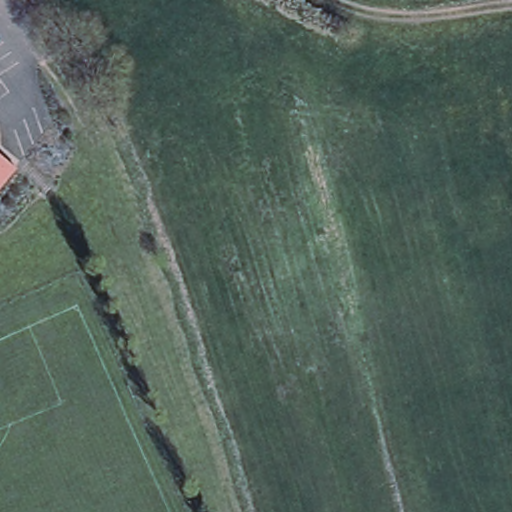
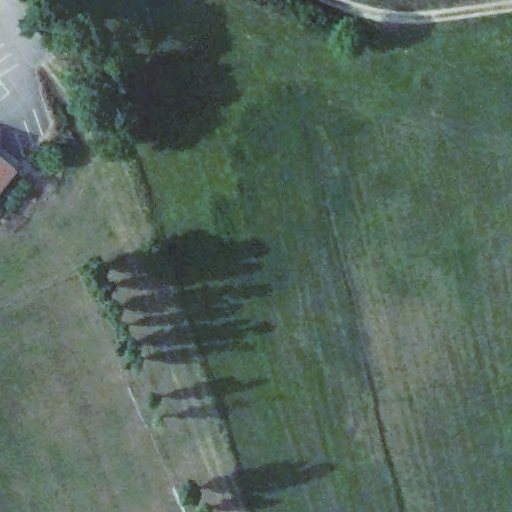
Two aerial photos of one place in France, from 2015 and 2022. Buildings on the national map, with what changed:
unchanged [(0,187),(0,152),(17,167),(0,187)]

